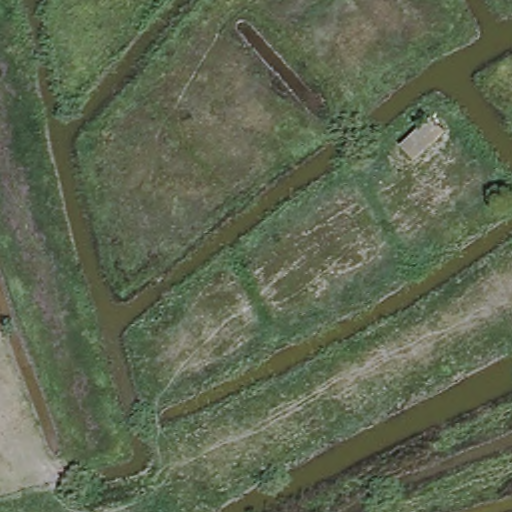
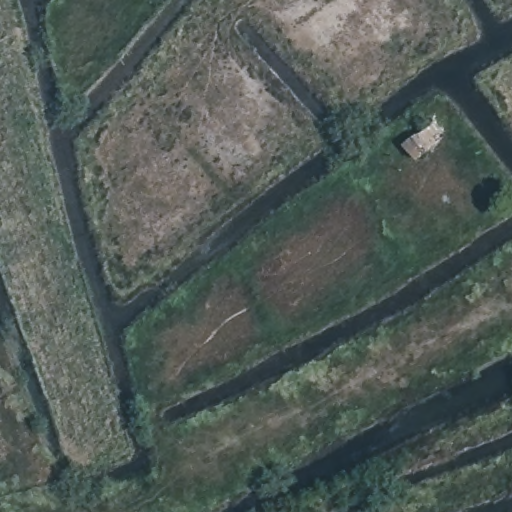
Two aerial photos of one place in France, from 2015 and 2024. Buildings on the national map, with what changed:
unchanged [(430,117),(444,133),(413,159),(399,143),(430,117)]

